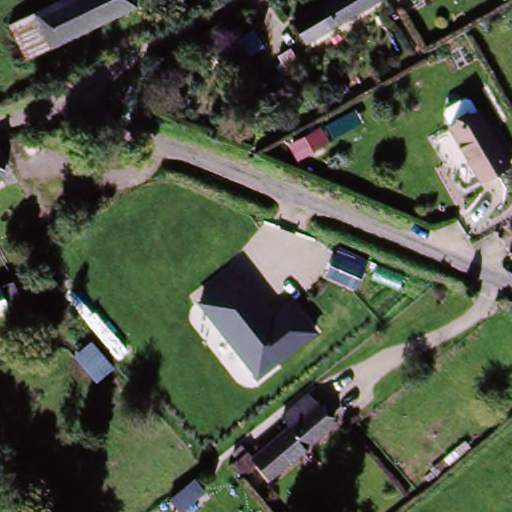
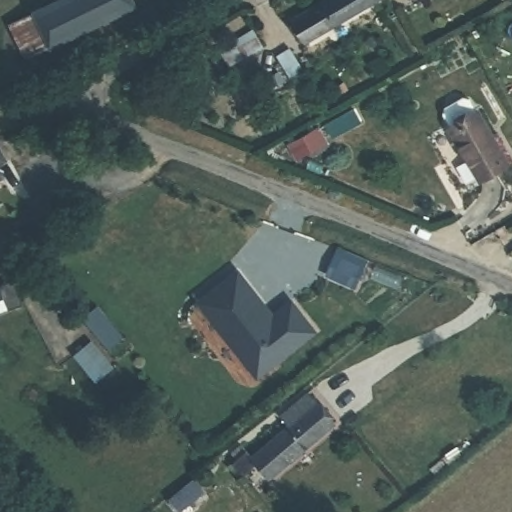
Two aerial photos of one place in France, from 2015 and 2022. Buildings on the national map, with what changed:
unchanged [(62,0),(143,0),(145,9),(131,11),(134,23),(42,41),(35,5),(62,0)]
unchanged [(295,27),(338,0),(389,0),(308,49),(295,27)]
unchanged [(42,41),(15,47),(8,11),(35,5),(42,41)]
unchanged [(472,177),(445,123),(474,109),(500,162),(472,177)]
unchanged [(7,160),(15,175),(0,183),(0,149),(15,141),(22,153),(7,160)]
unchanged [(197,299),(237,271),(272,314),(293,299),(317,332),(257,376),(197,299)]
unchanged [(35,306),(0,320),(0,289),(26,280),(35,306)]
unchanged [(290,417),(315,396),(339,425),(274,480),(257,460),(297,425),(290,417)]

